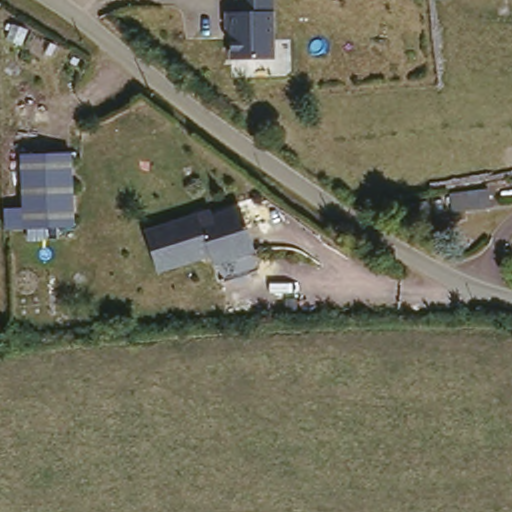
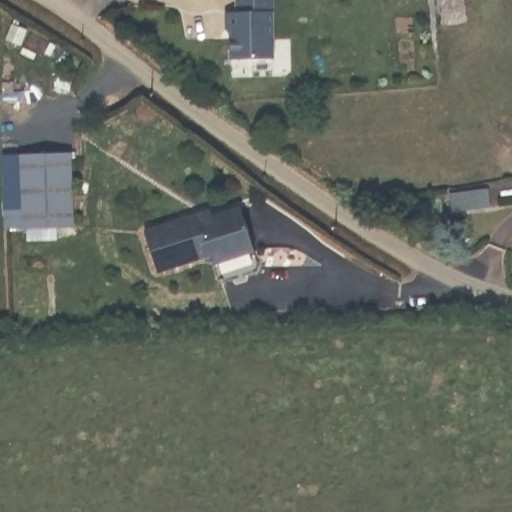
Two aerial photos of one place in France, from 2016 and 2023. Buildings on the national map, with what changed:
unchanged [(236,6),(235,0),(276,0),(276,56),(232,56),(230,7),(236,6)]
unchanged [(4,207),(23,205),(21,152),(72,149),(76,223),(6,226),(4,207)]
unchanged [(467,195),(505,189),(508,202),(509,209),(468,214),(467,205),(467,195)]
unchanged [(197,211),(199,217),(241,204),(255,247),(213,260),(210,251),(156,267),(144,228),(197,211)]

